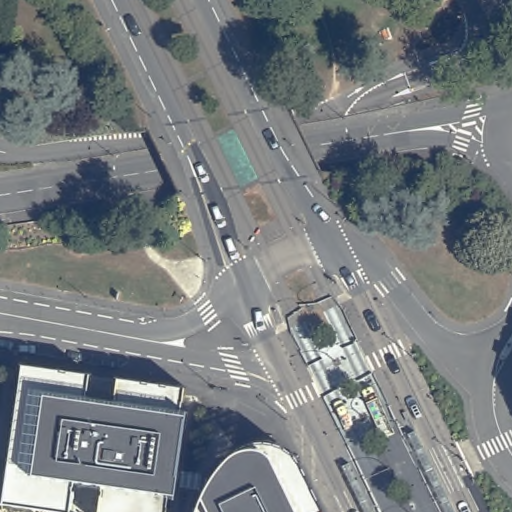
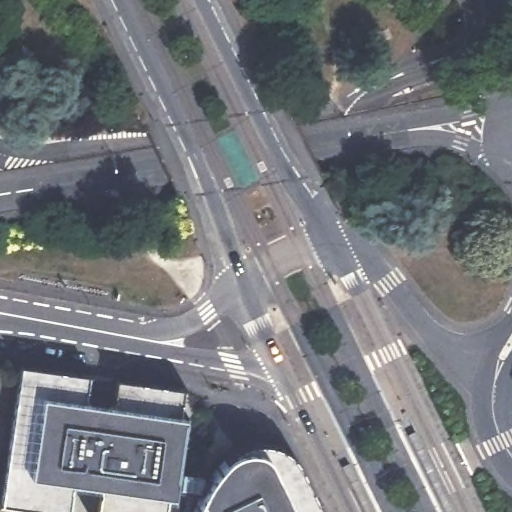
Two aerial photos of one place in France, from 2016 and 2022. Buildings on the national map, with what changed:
unchanged [(184,416),(173,498),(169,512),(46,512),(0,506),(0,495),(19,363),(185,387),(184,416)]
unchanged [(196,499),(209,478),(227,455),(240,445),(251,441),(252,441),(266,441),(280,445),(291,451),(299,459),(324,512),(191,512),(196,499)]

